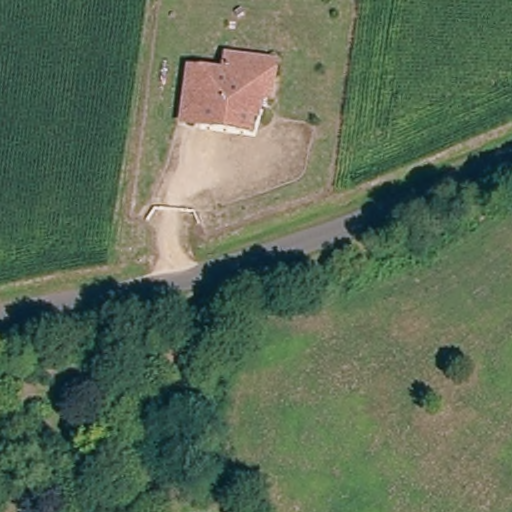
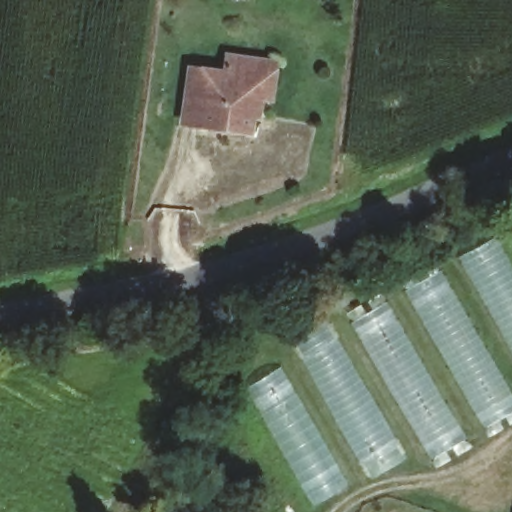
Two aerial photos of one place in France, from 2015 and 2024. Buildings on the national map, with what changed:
unchanged [(225,54),(272,60),(268,95),(258,95),(260,76),(224,71),(225,54)]
unchanged [(185,91),(187,67),(224,71),(260,76),(258,95),(257,113),(251,112),(249,129),(200,123),(182,121),(185,91)]
new [(512,266),(512,349),(458,257),(496,238),(512,266)]
new [(404,288),(438,270),(512,398),(512,412),(483,427),(404,288)]
new [(361,303),(366,311),(387,300),(468,439),(452,450),(455,455),(435,468),(346,312),(361,303)]
new [(326,320),(342,345),(408,458),(371,480),(335,418),(293,340),(326,320)]
new [(280,365),(351,484),(313,507),(242,388),(280,365)]

